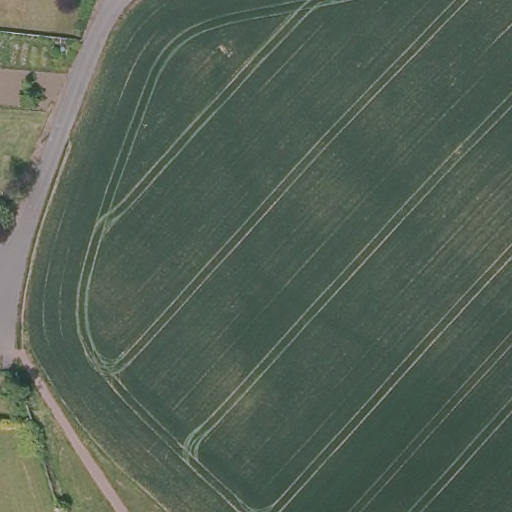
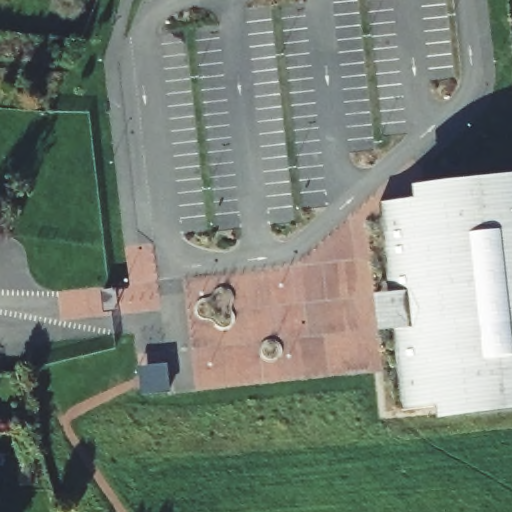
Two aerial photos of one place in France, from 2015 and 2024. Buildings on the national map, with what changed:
new [(512,178),(512,408),(446,413),(447,406),(400,410),(381,203),(425,197),(424,187),(512,178)]

